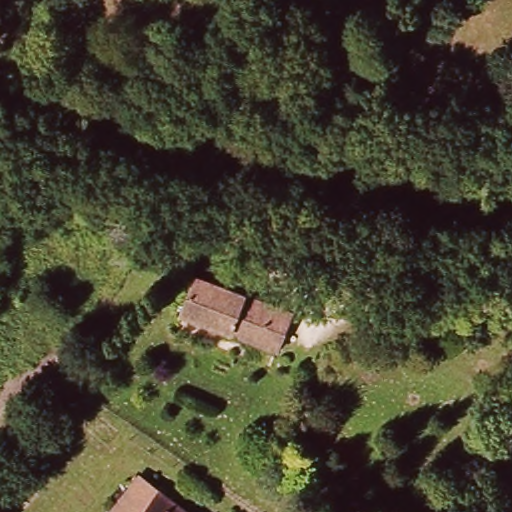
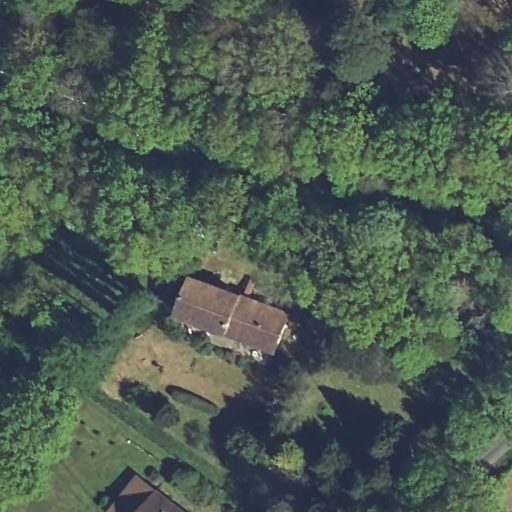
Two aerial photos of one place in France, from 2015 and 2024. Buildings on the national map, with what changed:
unchanged [(200,318),(210,280),(303,315),(290,350),(200,318)]
unchanged [(189,512),(137,512),(156,489),(189,512)]

